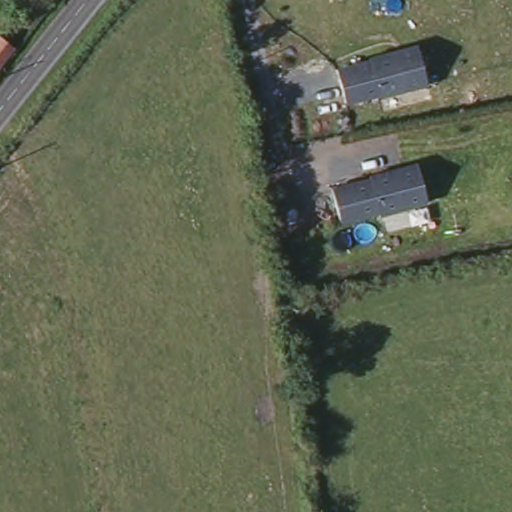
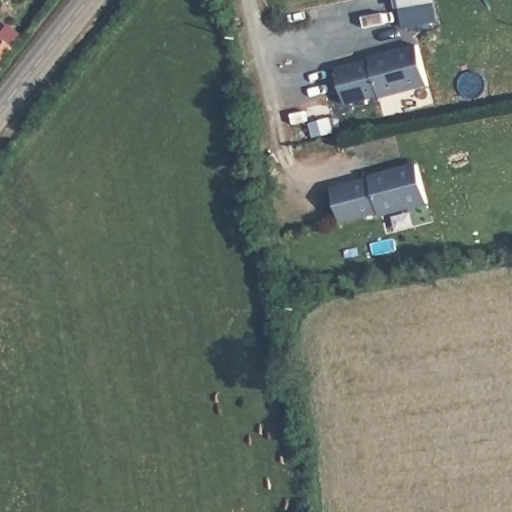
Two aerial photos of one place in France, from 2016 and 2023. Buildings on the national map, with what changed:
new [(415,21),(407,23),(405,9),(396,11),(394,0),(430,0),(435,23),(416,26),(415,21)]
unchanged [(417,45),(425,87),(344,105),(337,66),(417,45)]
unchanged [(370,177),(369,173),(412,162),(425,203),(383,214),(382,212),(341,222),(332,187),(370,177)]

